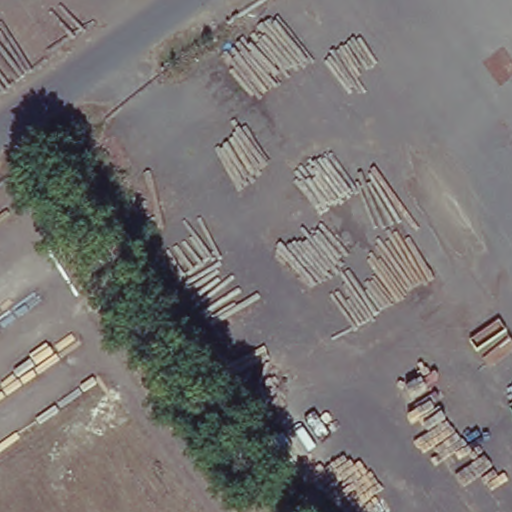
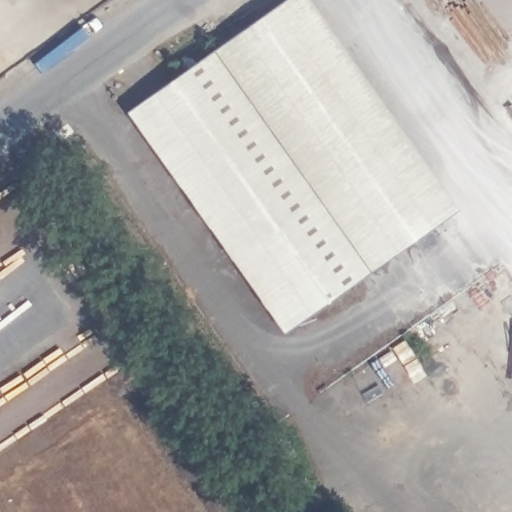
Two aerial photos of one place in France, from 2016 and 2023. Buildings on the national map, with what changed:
new [(268,0),(299,0),(451,214),(274,345),(108,116),(268,0)]

